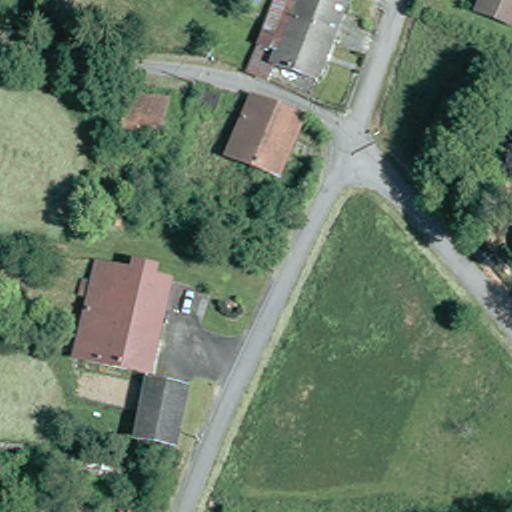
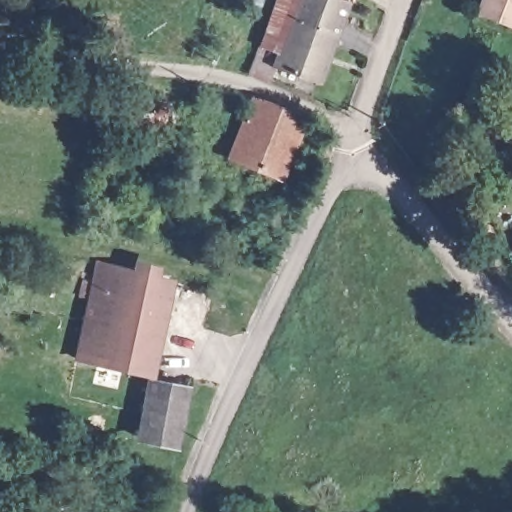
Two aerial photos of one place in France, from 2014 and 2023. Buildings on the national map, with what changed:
unchanged [(332,85),(290,68),(284,82),(265,74),(294,0),(351,0),(363,5),(332,85)]
unchanged [(484,0),(512,0),(512,24),(479,12),(484,0)]
unchanged [(304,119),(280,178),(231,159),(255,99),(304,119)]
unchanged [(511,137),(472,190),(455,177),(493,125),(511,137)]
unchanged [(76,360),(97,266),(172,282),(151,377),(76,360)]
unchanged [(175,447),(139,440),(144,415),(150,382),(187,391),(175,447)]

